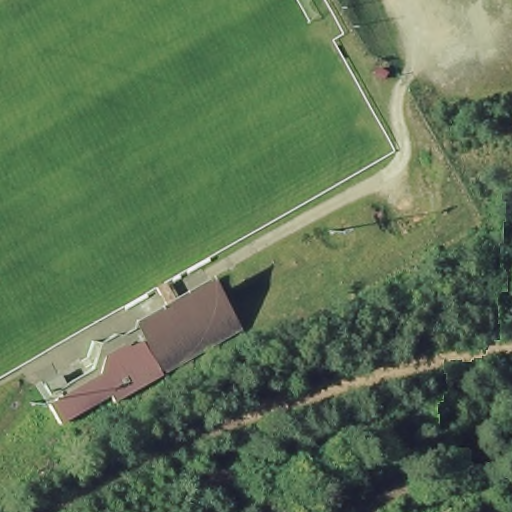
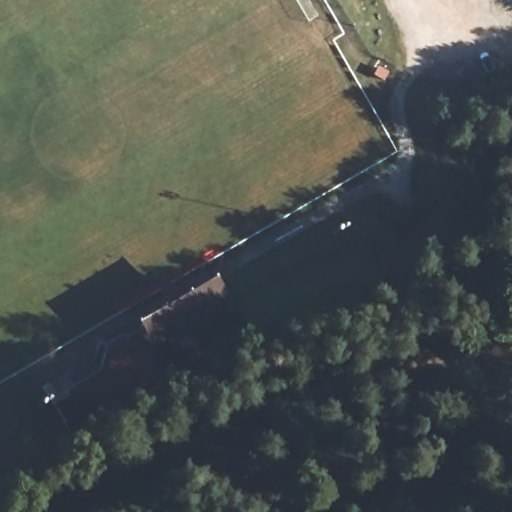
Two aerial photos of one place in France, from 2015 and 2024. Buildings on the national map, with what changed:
unchanged [(257,344),(73,436),(54,398),(111,375),(112,352),(148,336),(137,312),(222,275),(257,344)]

